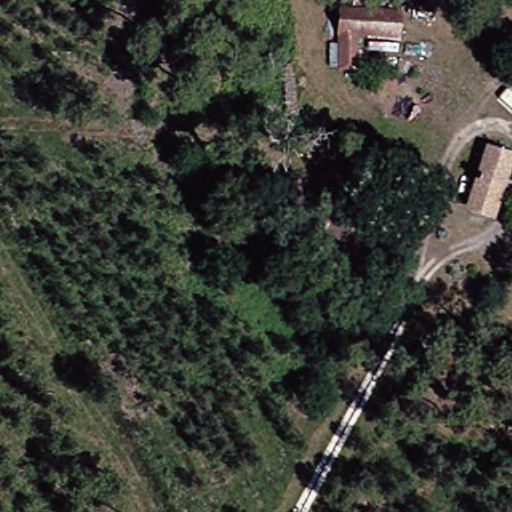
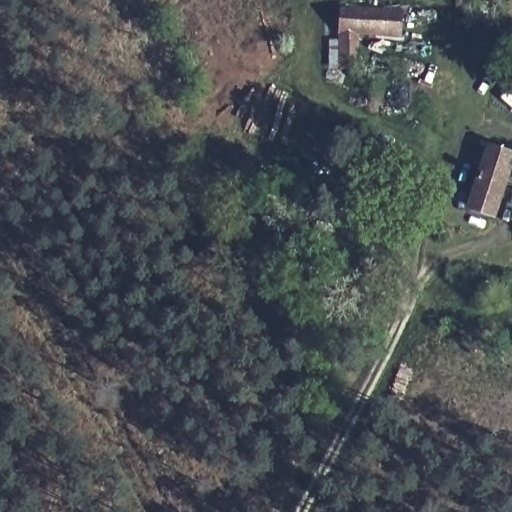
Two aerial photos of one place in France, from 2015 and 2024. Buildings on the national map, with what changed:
unchanged [(400,5),(399,15),(414,16),(414,25),(399,24),(399,34),(357,32),(356,64),(337,64),(338,31),(339,2),(400,5)]
unchanged [(469,199),(481,145),(489,145),(509,158),(494,202),(469,199)]

